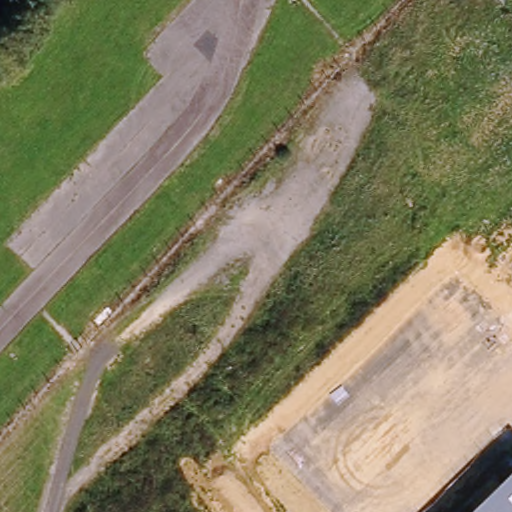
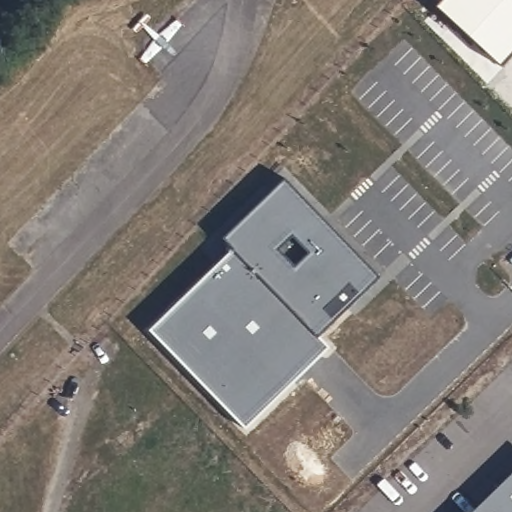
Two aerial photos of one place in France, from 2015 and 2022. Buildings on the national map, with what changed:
new [(318,335),(329,347),(245,426),(150,329),(237,250),(224,238),(285,181),(380,277),(318,335)]
unchanged [(512,474),(512,512),(472,512),(512,474)]

